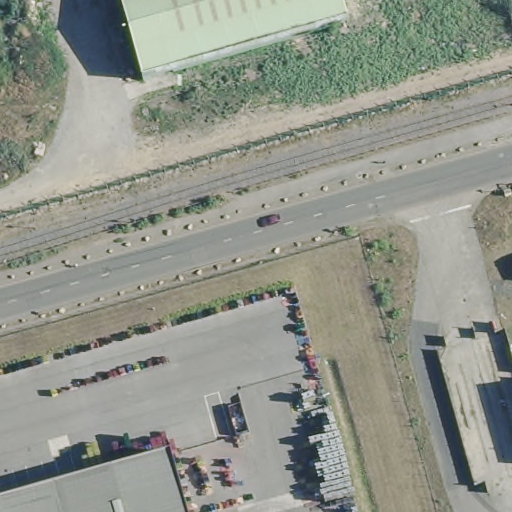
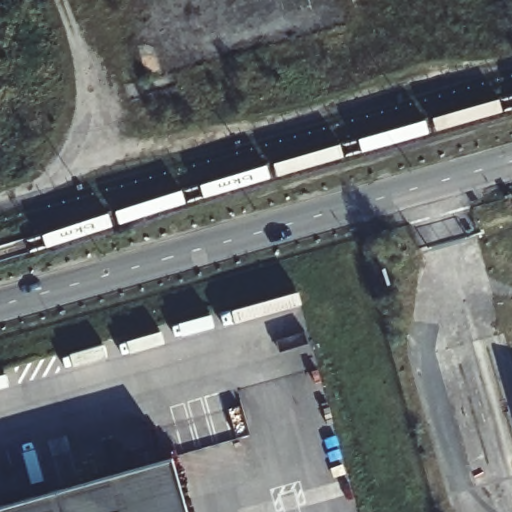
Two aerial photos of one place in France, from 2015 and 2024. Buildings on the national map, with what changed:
demolished [(67,0),(98,0),(99,4),(70,13),(67,0)]
demolished [(117,0),(340,0),(347,26),(137,86),(117,0)]
unchanged [(187,512),(0,512),(0,503),(170,455),(187,512)]

